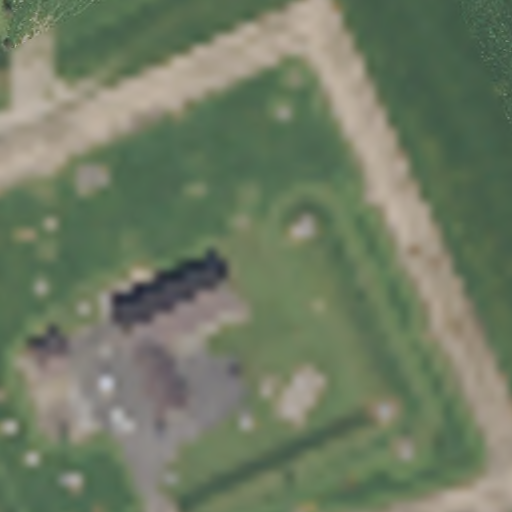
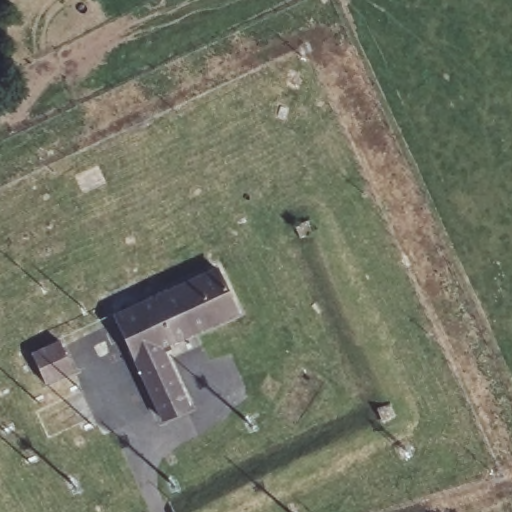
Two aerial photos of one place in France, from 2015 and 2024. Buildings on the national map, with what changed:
new [(223,256),(246,314),(167,349),(193,407),(165,415),(115,306),(223,256)]
new [(78,373),(52,381),(32,344),(62,336),(78,373)]

